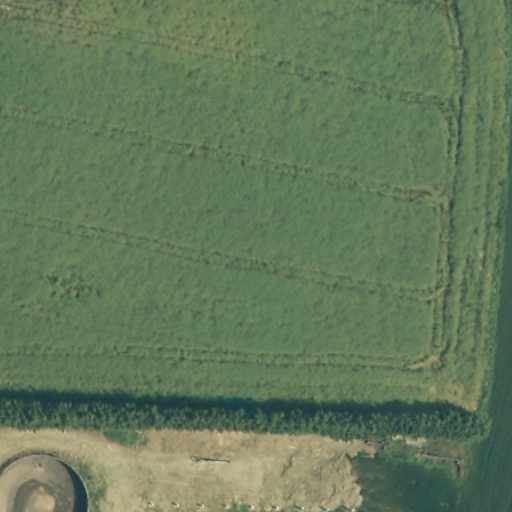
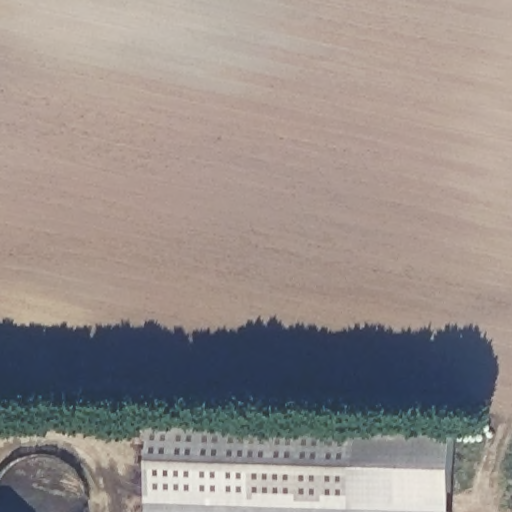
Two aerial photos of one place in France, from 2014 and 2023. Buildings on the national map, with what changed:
new [(154,421),(358,429),(354,512),(338,512),(148,506),(154,421)]
new [(358,429),(457,428),(455,512),(354,512),(358,429)]
new [(338,512),(148,512),(148,506),(338,512)]

